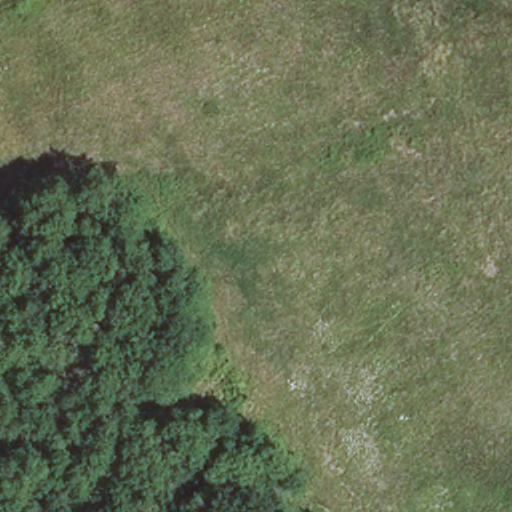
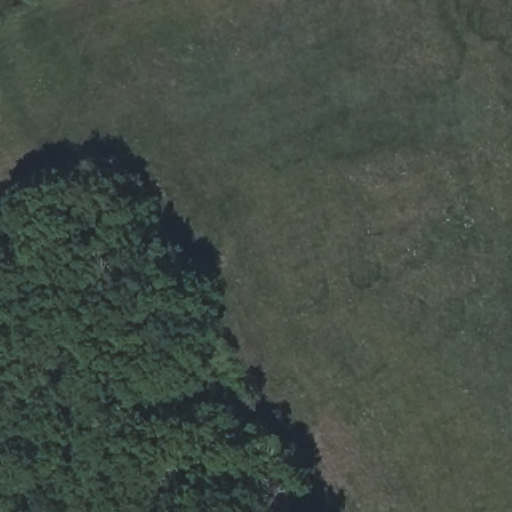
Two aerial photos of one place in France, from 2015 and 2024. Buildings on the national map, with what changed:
[]

